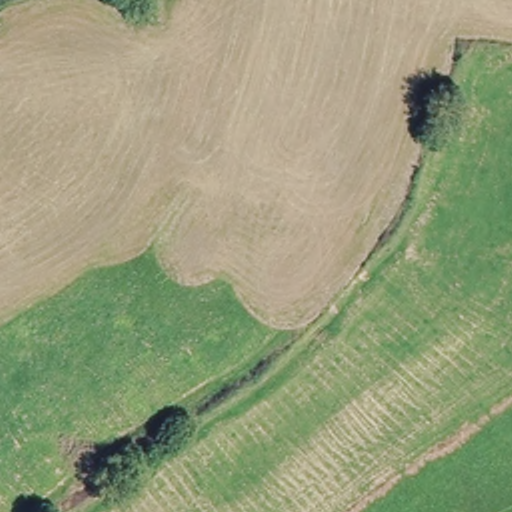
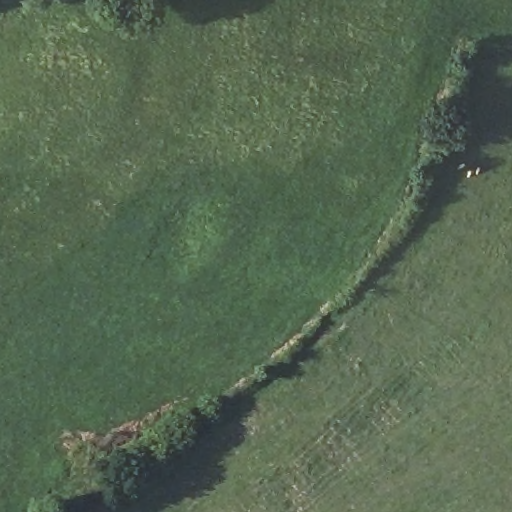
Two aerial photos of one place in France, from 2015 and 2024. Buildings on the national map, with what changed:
[]

